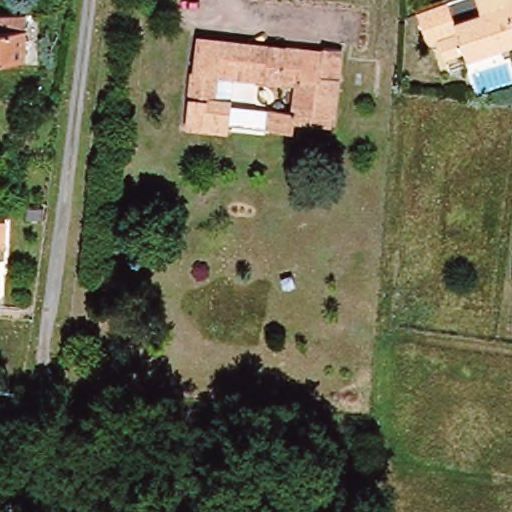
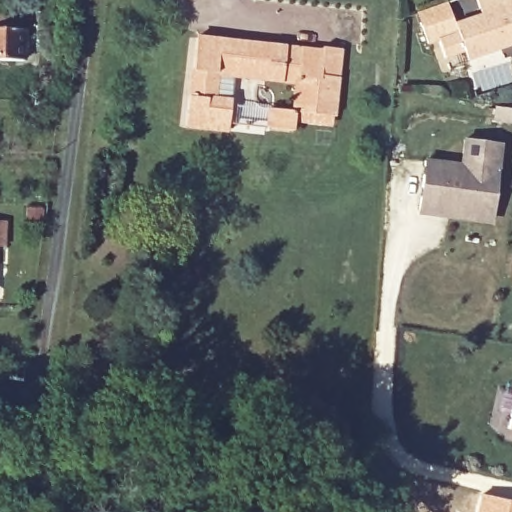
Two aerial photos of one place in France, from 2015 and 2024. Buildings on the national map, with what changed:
unchanged [(481,17),(480,15),(481,14),(476,0),(512,0),(512,46),(468,61),(466,54),(445,61),(438,43),(438,42),(456,36),(458,35),(456,26),(481,17)]
unchanged [(438,42),(438,43),(425,47),(414,14),(445,3),(456,36),(438,42)]
unchanged [(0,57),(0,14),(24,14),(22,57),(0,57)]
unchanged [(322,49),(322,47),(341,49),(332,124),(292,119),(291,129),(267,127),(269,110),(292,112),(296,82),(217,74),(215,97),(230,99),(226,129),(187,125),(197,36),(217,38),(268,44),(301,47),(322,49)]
new [(424,159),(458,164),(462,138),(502,144),(492,224),(417,215),(424,159)]
unchanged [(4,222),(3,242),(0,242),(0,222),(4,222)]
new [(512,428),(508,427),(512,409),(512,428)]
new [(512,501),(512,512),(475,512),(480,493),(512,501)]

